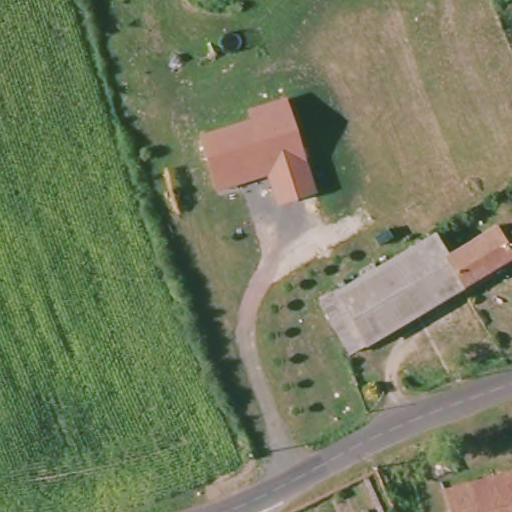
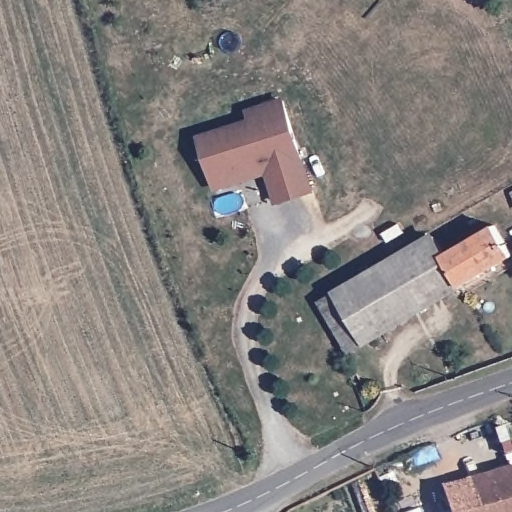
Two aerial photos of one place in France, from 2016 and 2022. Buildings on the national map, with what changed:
unchanged [(267,176),(215,191),(202,137),(253,122),(250,112),(285,103),(315,195),(276,207),(267,176)]
unchanged [(495,222),(512,250),(512,254),(462,284),(443,254),(495,222)]
unchanged [(432,236),(443,254),(462,284),(432,303),(402,254),(432,236)]
unchanged [(432,303),(367,343),(335,292),(402,254),(432,303)]
unchanged [(318,301),(335,292),(367,343),(350,354),(318,301)]
unchanged [(450,491),(512,472),(512,512),(456,512),(450,491)]

